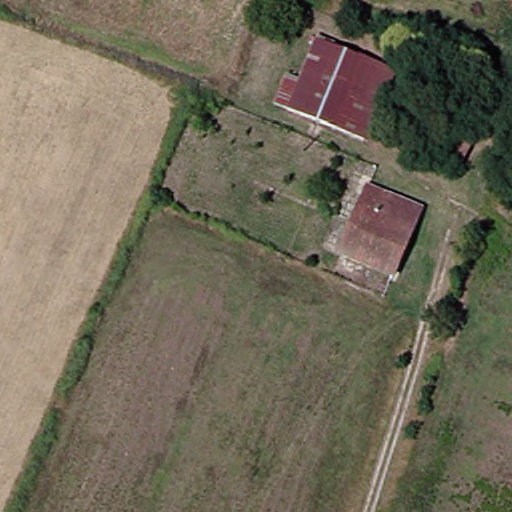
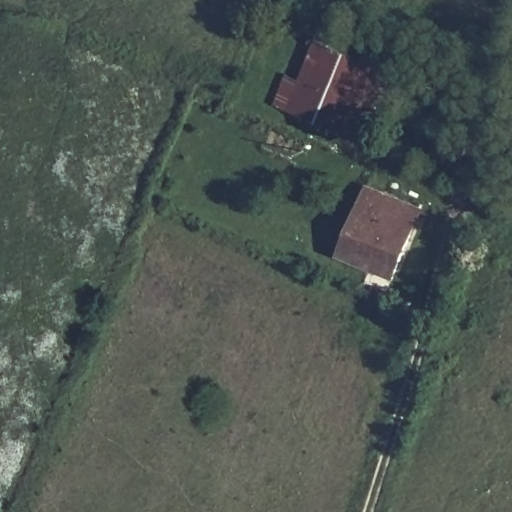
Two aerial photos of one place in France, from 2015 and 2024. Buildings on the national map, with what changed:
unchanged [(278,74),(298,81),(312,41),(386,71),(360,140),(287,111),(268,103),(278,74)]
unchanged [(386,275),(333,254),(346,226),(361,190),(413,211),(386,275)]

